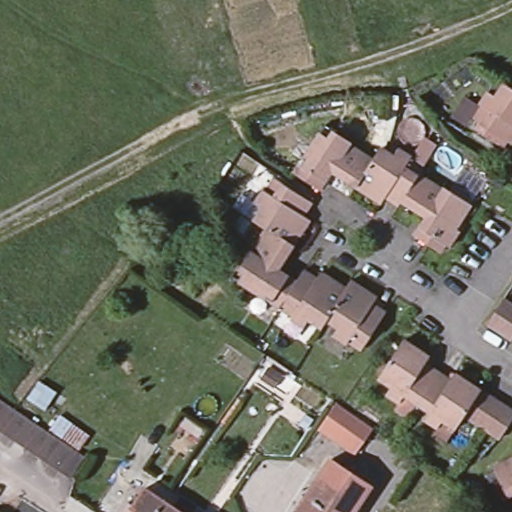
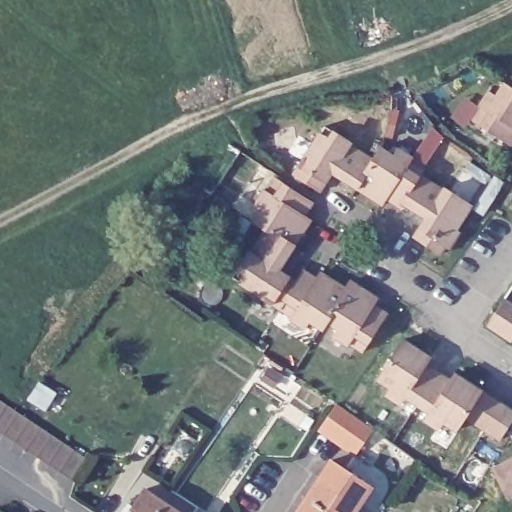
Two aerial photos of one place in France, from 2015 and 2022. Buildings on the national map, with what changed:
unchanged [(480,103),(487,91),(496,96),(504,83),(512,89),(512,141),(511,142),(474,118),(482,105),(480,103)]
unchanged [(320,128),(345,144),(343,147),(369,163),(352,190),(327,173),(320,183),(315,192),(290,176),(320,128)]
unchanged [(369,163),(377,151),(391,159),(395,152),(408,160),(406,163),(418,170),(414,177),(398,202),(395,207),(380,198),(376,205),(352,190),(369,163)]
unchanged [(422,218),(398,202),(414,177),(438,192),(441,191),(465,206),(435,254),(426,248),(410,238),(422,218)]
unchanged [(255,220),(262,208),(255,204),(263,192),(266,193),(275,180),(312,204),(303,218),(308,221),(294,245),(267,229),(255,220)]
unchanged [(233,278),(250,252),(252,253),(267,229),(294,245),(278,270),(299,284),(282,310),(233,278)]
unchanged [(299,284),(306,273),(320,282),(324,275),(347,290),(327,321),(323,329),(311,322),(307,328),(294,321),(295,318),(282,310),(299,284)]
unchanged [(347,290),(352,283),(377,299),(373,306),(384,313),(362,349),(350,342),(348,344),(335,337),(340,329),(327,321),(347,290)]
unchanged [(512,304),(512,338),(487,322),(503,297),(512,304)]
unchanged [(404,397),(399,404),(387,397),(391,389),(378,381),(403,342),(429,359),(425,366),(437,373),(417,406),(404,397)]
unchanged [(437,373),(450,382),(454,375),(480,391),(464,416),(455,431),(441,422),(437,429),(425,421),(429,414),(417,406),(437,373)]
unchanged [(480,391),(512,413),(512,419),(500,440),(464,416),(480,391)]
unchanged [(0,431),(0,397),(14,406),(67,443),(86,456),(70,478),(0,431)]
unchanged [(356,452),(355,451),(358,447),(349,441),(346,445),(318,425),(335,401),(373,426),(356,452)]
unchanged [(507,496),(492,468),(512,458),(512,494),(507,496)]
unchanged [(321,477),(332,459),(371,484),(353,512),(297,512),(321,477)]
unchanged [(145,489),(179,512),(130,512),(145,489)]

